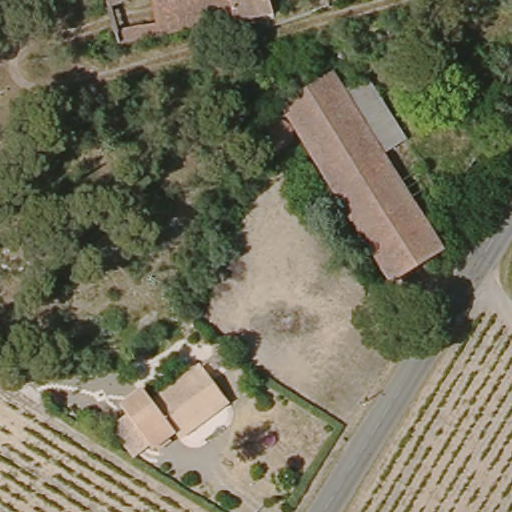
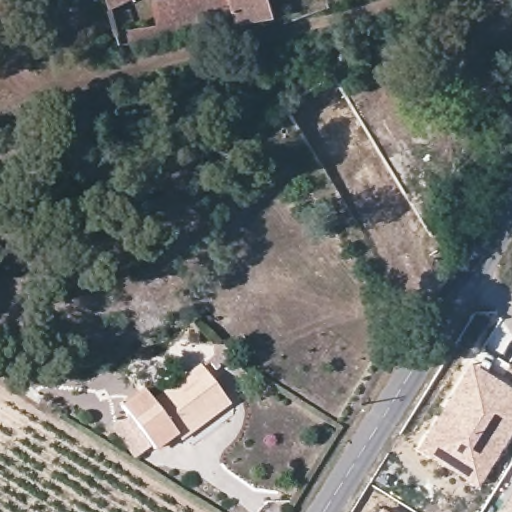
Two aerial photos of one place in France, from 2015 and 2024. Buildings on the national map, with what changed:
unchanged [(229,20),(113,45),(108,27),(148,20),(144,1),(104,5),(103,0),(225,0),(229,20)]
unchanged [(271,24),(231,32),(229,20),(225,0),(266,0),(271,24)]
unchanged [(436,221),(439,229),(430,236),(439,252),(389,285),(301,141),(276,152),(261,120),(279,105),(331,71),(336,80),(363,126),(376,118),(392,144),(379,151),(421,222),(428,220),(436,221)]
new [(471,361),(512,386),(512,433),(479,485),(417,447),(441,411),(471,361)]
unchanged [(220,401),(173,433),(159,416),(145,426),(128,402),(143,392),(147,398),(194,365),(220,401)]
unchanged [(159,416),(173,433),(146,452),(116,410),(128,402),(145,426),(159,416)]
new [(512,490),(512,512),(505,512),(501,509),(512,490)]
new [(379,512),(383,505),(394,512),(379,512)]

